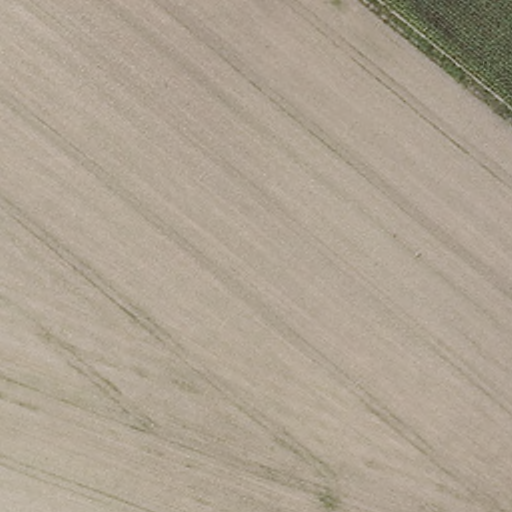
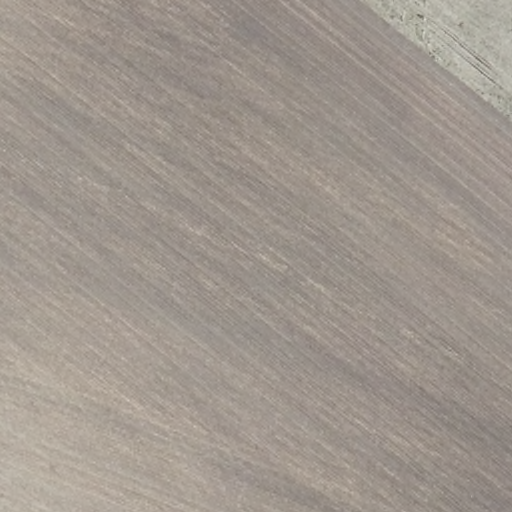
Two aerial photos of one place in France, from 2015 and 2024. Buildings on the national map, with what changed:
[]

